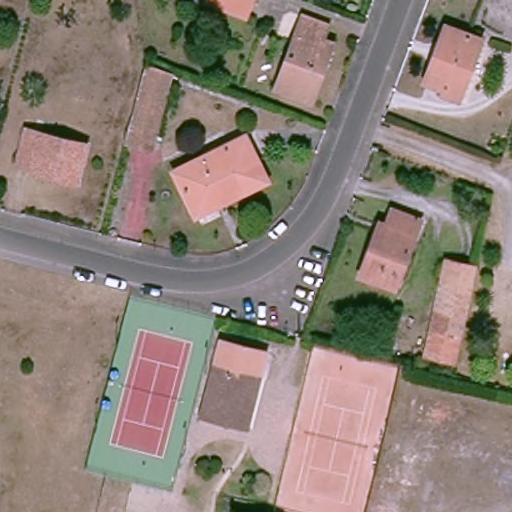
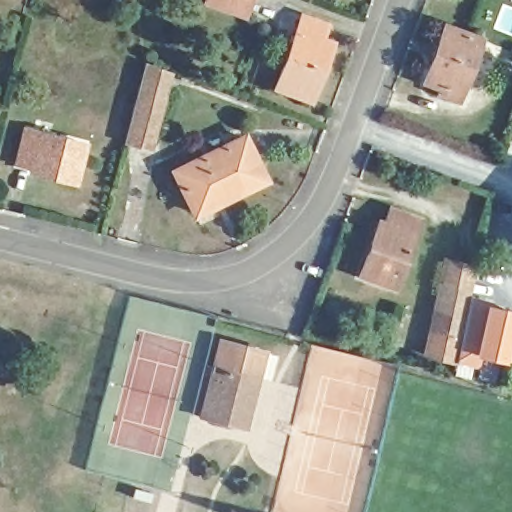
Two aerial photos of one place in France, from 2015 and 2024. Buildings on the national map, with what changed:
unchanged [(204,0),(257,0),(249,23),(201,8),(204,0)]
unchanged [(320,39),(332,42),(310,102),(276,90),(301,20),(325,27),(320,39)]
unchanged [(456,102),(443,98),(445,91),(423,81),(446,27),(480,42),(456,102)]
unchanged [(176,75),(155,154),(125,146),(146,61),(176,75)]
unchanged [(76,188),(40,180),(41,174),(17,167),(25,132),(86,147),(76,188)]
unchanged [(255,156),(250,160),(260,180),(217,200),(219,205),(199,216),(177,173),(246,139),(255,156)]
unchanged [(395,286),(362,274),(380,222),(387,225),(393,211),(420,220),(395,286)]
unchanged [(456,370),(420,361),(446,257),(482,266),(456,370)]
new [(478,369),(458,364),(474,300),(483,301),(512,307),(512,332),(507,363),(482,357),(478,369)]
unchanged [(241,425),(206,418),(221,345),(265,353),(260,379),(250,427),(241,425)]

